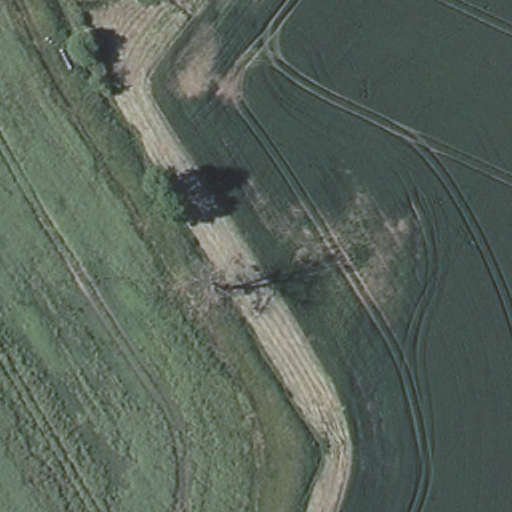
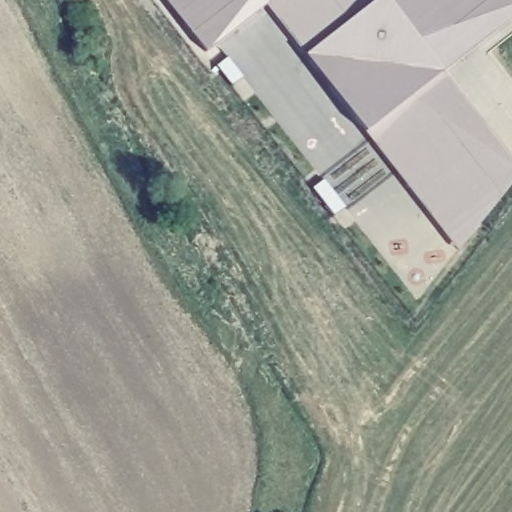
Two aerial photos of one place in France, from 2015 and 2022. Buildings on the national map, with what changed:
new [(442,72),(512,161),(512,183),(458,251),(365,131),(304,54),(266,4),(204,51),(165,0),(512,0),(512,17),(442,72)]

